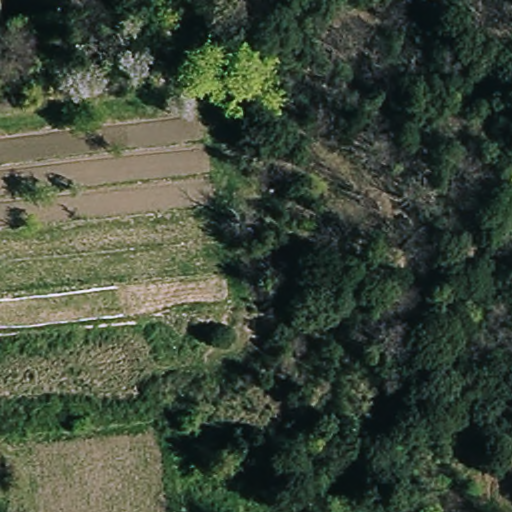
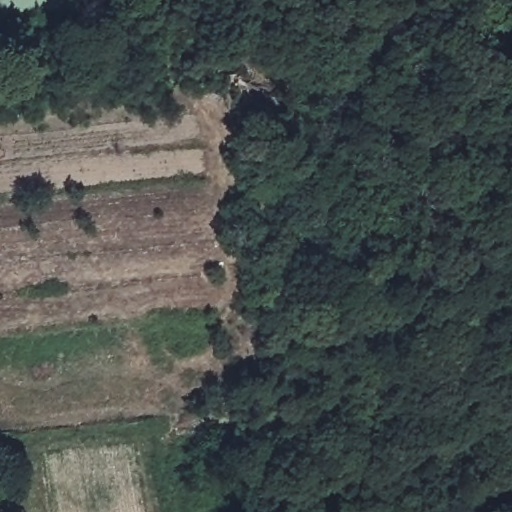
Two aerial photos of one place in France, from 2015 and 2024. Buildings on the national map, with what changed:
[]

